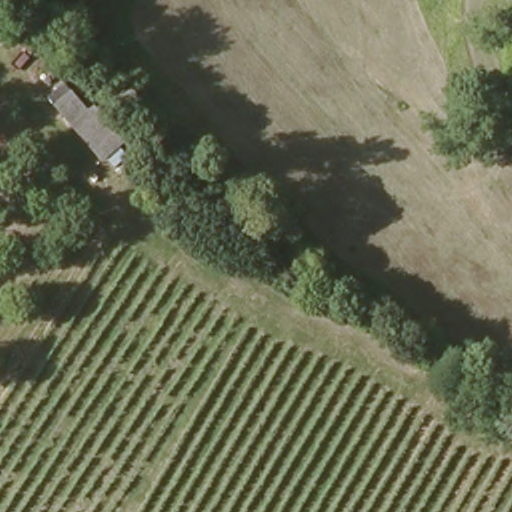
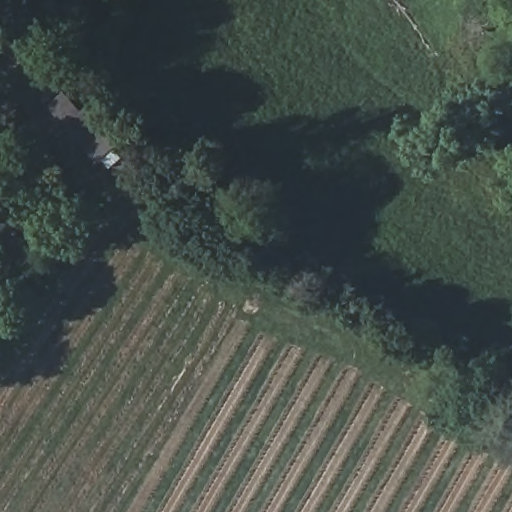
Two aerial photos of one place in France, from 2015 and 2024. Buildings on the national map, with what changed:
unchanged [(102,166),(54,106),(76,87),(127,144),(102,166)]

